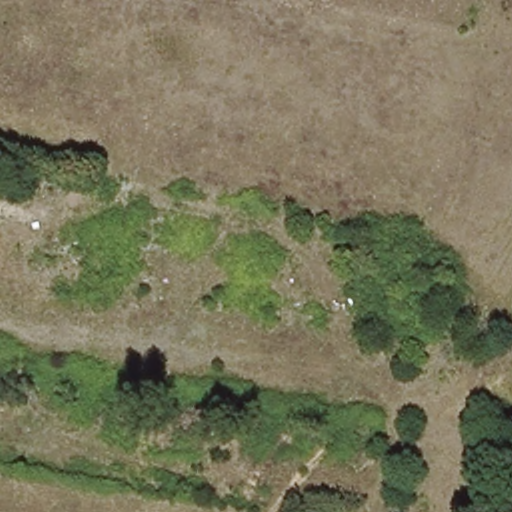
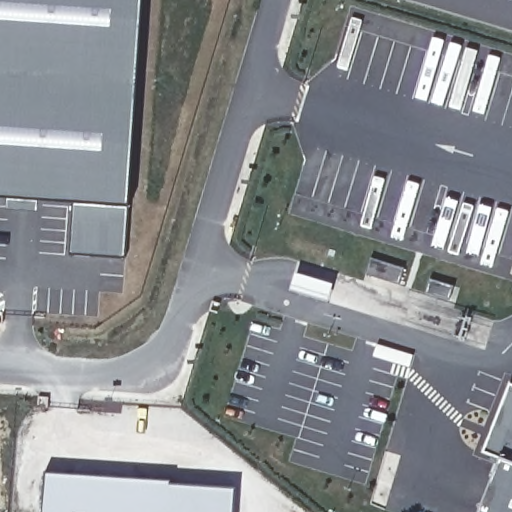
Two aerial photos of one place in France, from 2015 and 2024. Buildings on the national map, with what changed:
new [(70,252),(73,200),(0,196),(0,0),(143,0),(126,256),(70,252)]
new [(480,450),(509,381),(512,383),(512,512),(474,512),(497,456),(480,450)]
new [(234,485),(232,512),(41,512),(43,472),(234,485)]

